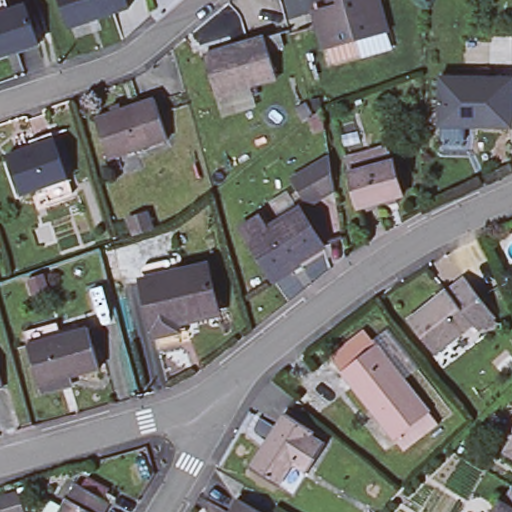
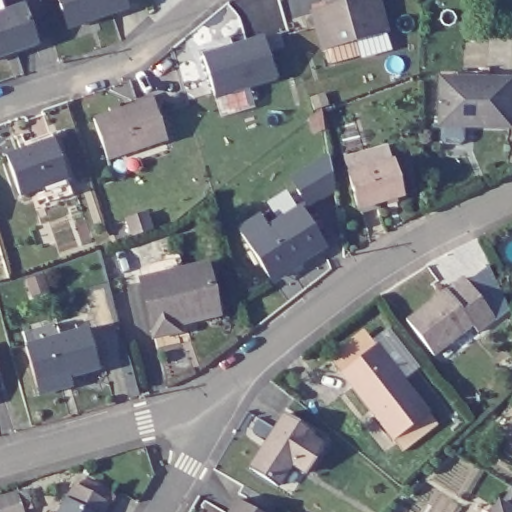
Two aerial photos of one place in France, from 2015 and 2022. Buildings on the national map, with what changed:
unchanged [(67,31),(57,0),(122,0),(126,13),(67,31)]
unchanged [(393,25),(333,42),(323,8),(342,2),(342,0),(386,0),(393,25)]
unchanged [(0,64),(0,5),(5,3),(10,19),(26,14),(38,51),(0,64)]
unchanged [(207,56),(267,39),(280,77),(235,90),(218,95),(207,56)]
unchanged [(508,130),(439,126),(440,81),(441,74),(477,74),(477,82),(510,83),(508,130)]
unchanged [(100,118),(157,99),(170,137),(111,157),(100,118)]
unchanged [(24,198),(10,157),(35,148),(34,140),(54,133),(56,140),(70,181),(75,196),(51,204),(47,190),(24,198)]
unchanged [(356,208),(346,175),(343,162),(362,156),(390,148),(393,162),(402,195),(356,208)]
unchanged [(328,151),(335,188),(313,210),(292,191),(328,151)]
unchanged [(146,213),(152,229),(133,236),(128,220),(146,213)]
unchanged [(241,235),(262,222),(271,235),(301,217),(321,248),(269,281),(249,248),(241,235)]
unchanged [(218,317),(178,328),(180,337),(158,342),(146,289),(142,271),(175,263),(178,280),(207,272),(218,317)]
unchanged [(462,354),(452,340),(440,350),(413,315),(451,287),(468,275),(499,316),(504,323),(462,354)]
unchanged [(30,346),(90,331),(100,370),(40,386),(30,346)]
unchanged [(401,443),(395,434),(392,436),(340,367),(374,341),(426,409),(433,418),(401,443)]
unchanged [(0,394),(0,385),(1,394),(0,394)]
unchanged [(284,414),(311,429),(307,435),(322,445),(307,470),(290,459),(277,481),(251,466),(284,414)]
unchanged [(505,451),(512,440),(512,456),(505,451)]
unchanged [(79,485),(110,504),(106,512),(61,512),(67,500),(70,502),(79,485)]
unchanged [(16,512),(0,512),(0,501),(5,497),(16,512)]
unchanged [(504,512),(512,499),(512,512),(504,512)]
unchanged [(253,512),(231,512),(236,502),(253,512)]

